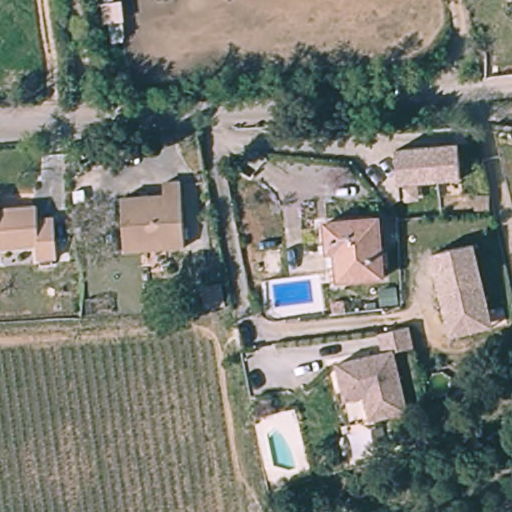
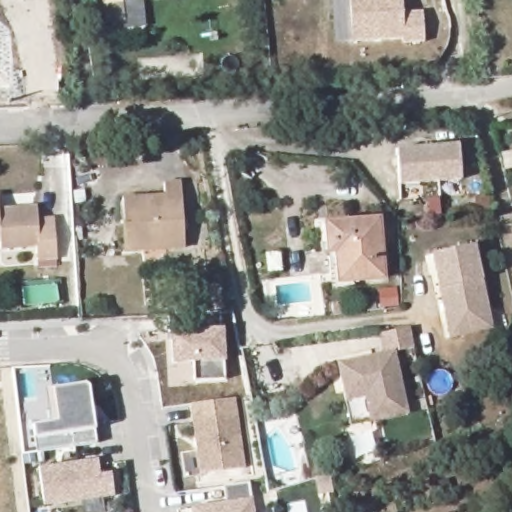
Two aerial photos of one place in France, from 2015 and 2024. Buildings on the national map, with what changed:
new [(420,10),(417,40),(400,40),(400,36),(349,38),(348,0),(400,0),(400,10),(420,10)]
unchanged [(123,1),(125,24),(102,25),(100,4),(123,1)]
unchanged [(462,177),(404,184),(401,148),(460,142),(462,177)]
unchanged [(183,247),(125,254),(120,198),(163,192),(162,180),(177,179),(183,247)]
unchanged [(40,219),(55,218),(58,258),(43,260),(42,247),(0,252),(0,209),(38,205),(40,219)]
unchanged [(335,255),(329,255),(327,225),(333,225),(380,221),(383,257),(335,260),(335,255)]
unchanged [(455,340),(451,326),(437,256),(478,247),(493,317),(497,331),(455,340)]
unchanged [(383,257),(385,277),(335,281),(335,260),(383,257)]
new [(193,363),(172,365),(169,331),(168,314),(220,312),(224,328),(225,361),(225,378),(195,380),(193,363)]
unchanged [(405,332),(410,353),(388,356),(396,418),(358,422),(355,398),(335,400),(330,362),(377,356),(375,336),(405,332)]
new [(50,422),(45,389),(85,383),(89,387),(97,430),(99,444),(37,453),(35,439),(32,425),(50,422)]
new [(236,398),(247,468),(200,475),(200,470),(197,470),(194,452),(198,452),(190,405),(236,398)]
new [(97,456),(99,471),(110,470),(114,493),(82,497),(43,504),(37,465),(97,456)]
new [(225,500),(222,482),(248,479),(253,512),(192,512),(190,505),(225,500)]

